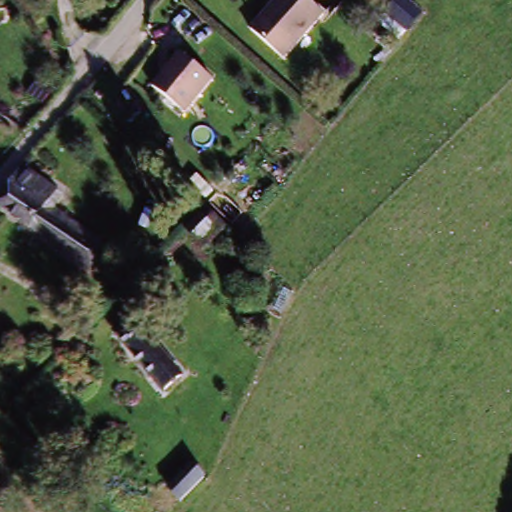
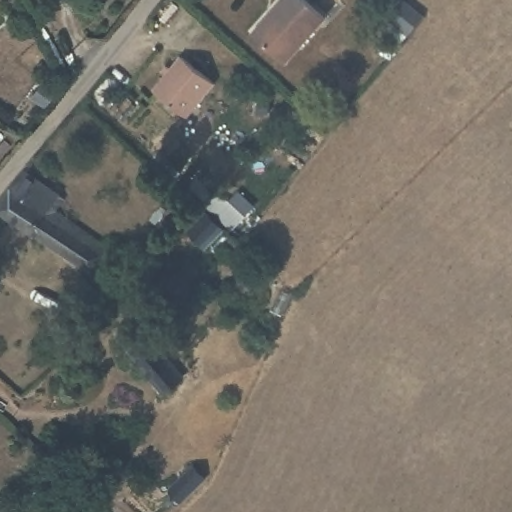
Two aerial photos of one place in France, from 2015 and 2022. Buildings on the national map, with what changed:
unchanged [(295,0),(319,21),(281,66),(251,40),(285,0),(295,0)]
unchanged [(184,120),(151,94),(179,58),(213,84),(184,120)]
unchanged [(101,258),(88,276),(0,208),(0,199),(9,186),(11,188),(18,180),(30,189),(37,181),(56,194),(53,199),(58,202),(48,217),(51,219),(58,211),(73,223),(96,239),(108,249),(101,258)]
unchanged [(213,213),(230,228),(211,249),(193,233),(213,213)]
unchanged [(113,336),(129,322),(183,384),(167,398),(113,336)]
unchanged [(183,501),(171,490),(194,467),(206,477),(183,501)]

